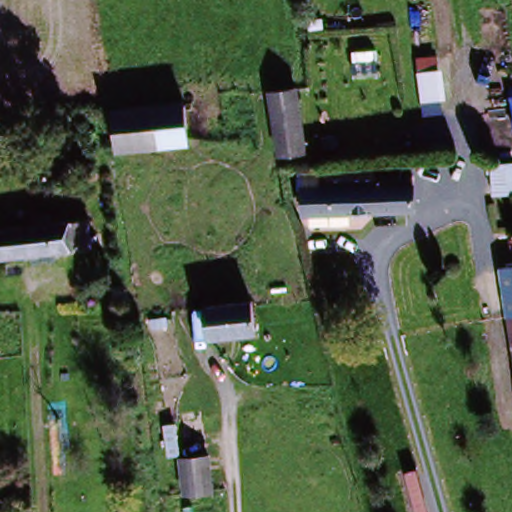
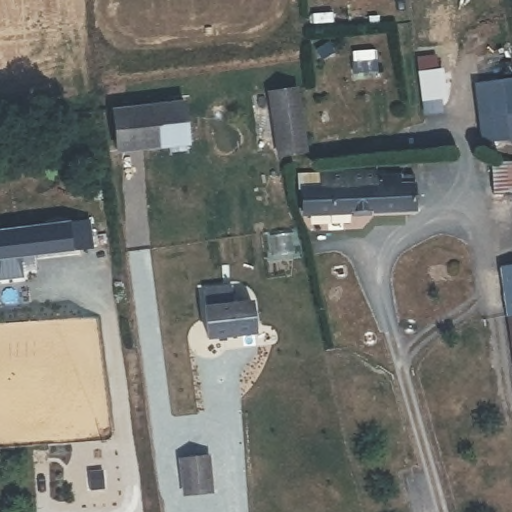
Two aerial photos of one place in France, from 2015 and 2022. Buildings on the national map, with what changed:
unchanged [(351,81),(349,51),(380,50),(382,82),(351,81)]
new [(512,81),(512,137),(487,139),(476,85),(512,81)]
unchanged [(281,157),(269,96),(293,93),(308,153),(281,157)]
unchanged [(186,139),(118,149),(112,115),(180,105),(186,139)]
unchanged [(492,193),(490,167),(510,166),(512,180),(512,191),(492,193)]
unchanged [(301,191),(350,187),(348,177),(398,172),(399,182),(410,181),(414,210),(305,220),(301,191)]
unchanged [(13,225),(94,219),(113,217),(116,247),(97,249),(15,255),(13,225)]
unchanged [(508,275),(512,274),(512,307),(508,275)]
unchanged [(249,306),(252,329),(214,333),(211,310),(249,306)]
unchanged [(183,456),(208,453),(213,490),(187,492),(183,456)]

